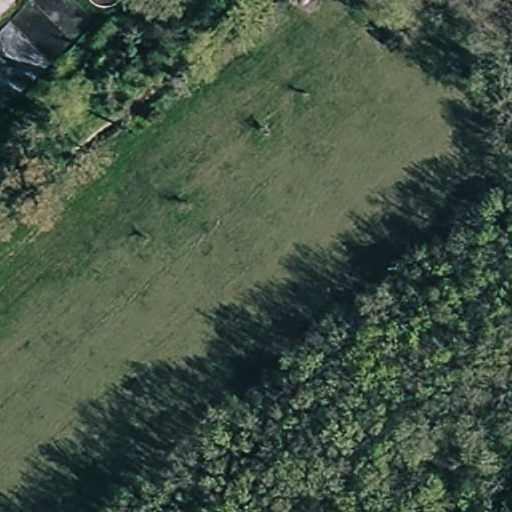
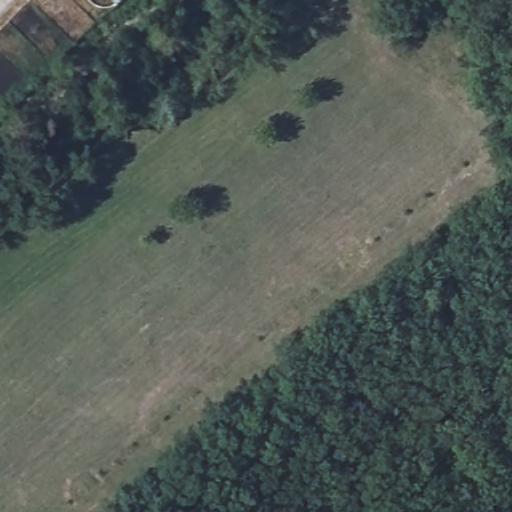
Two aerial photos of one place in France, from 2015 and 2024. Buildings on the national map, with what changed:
[]

